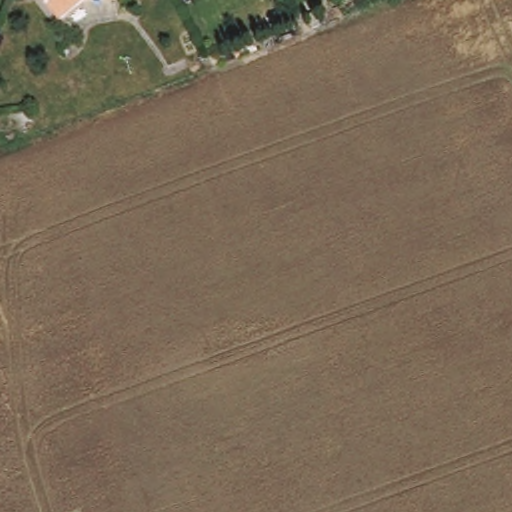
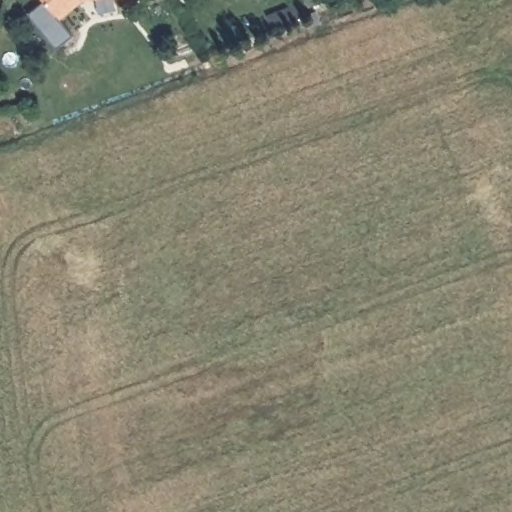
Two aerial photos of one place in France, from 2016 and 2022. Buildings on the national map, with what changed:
unchanged [(63,19),(64,23),(50,27),(40,0),(102,0),(85,2),(63,19)]

